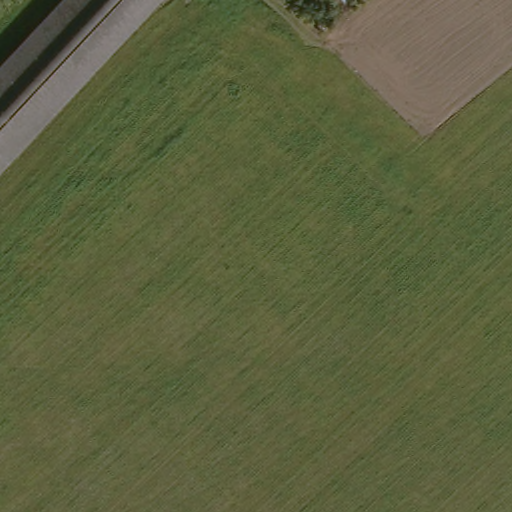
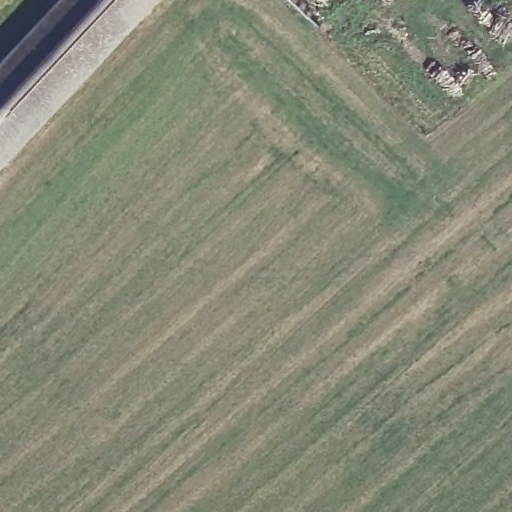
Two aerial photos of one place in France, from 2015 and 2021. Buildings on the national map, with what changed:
unchanged [(0,69),(62,0),(158,0),(0,176),(0,69)]
unchanged [(339,3),(337,0),(343,0),(339,3)]

